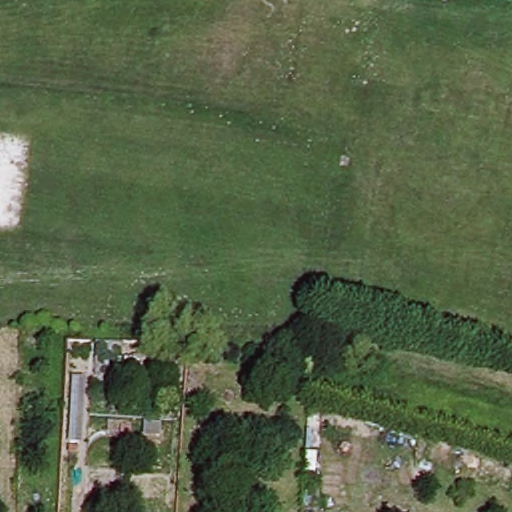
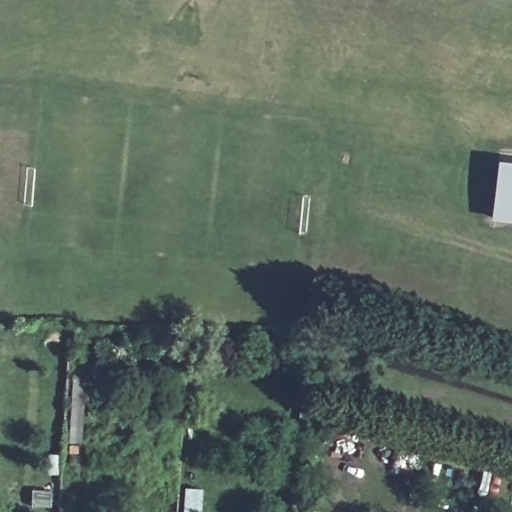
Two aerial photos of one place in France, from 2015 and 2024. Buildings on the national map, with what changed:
new [(512,221),(490,219),(497,159),(512,160),(512,221)]

